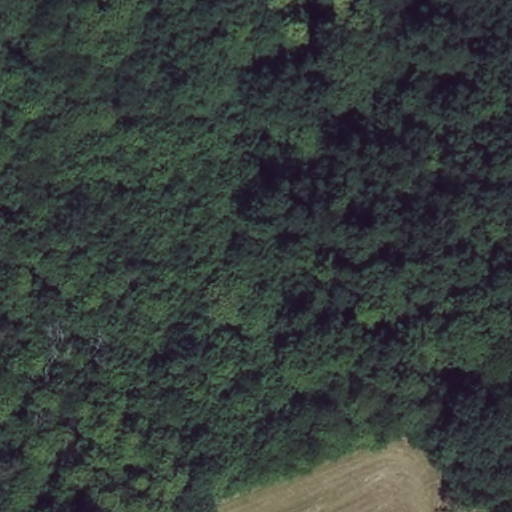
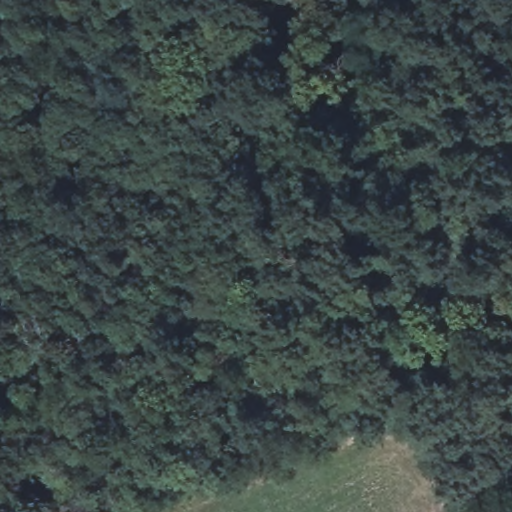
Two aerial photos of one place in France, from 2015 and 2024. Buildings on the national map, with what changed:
unchanged [(315,48),(344,35),(367,87),(337,100),(313,111),(301,85),(326,74),(315,48)]

